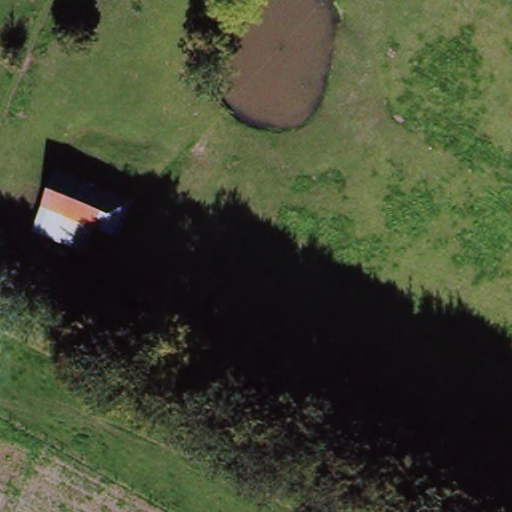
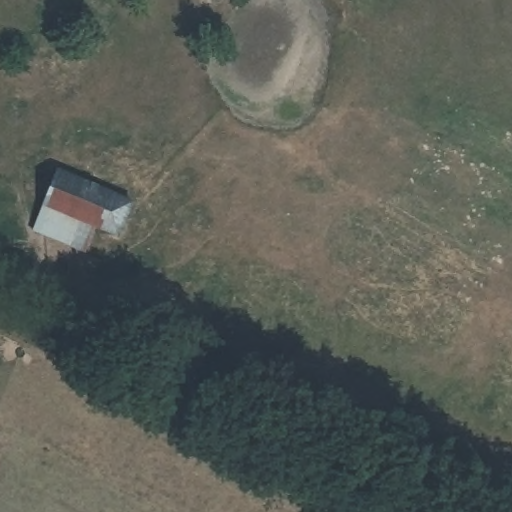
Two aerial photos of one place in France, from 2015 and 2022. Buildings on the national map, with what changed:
unchanged [(215,7),(204,0),(220,0),(215,7)]
unchanged [(135,197),(120,240),(97,232),(83,258),(30,237),(60,168),(135,197)]

